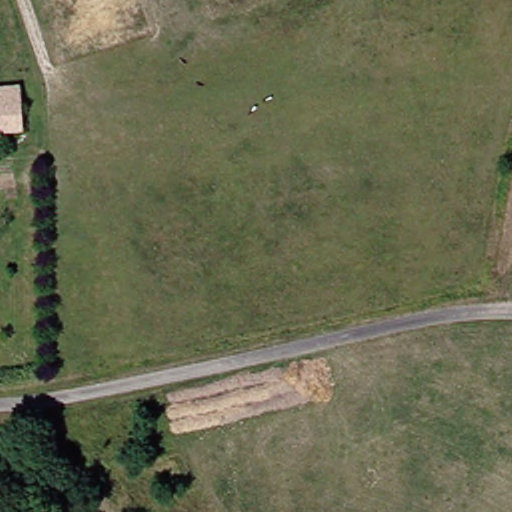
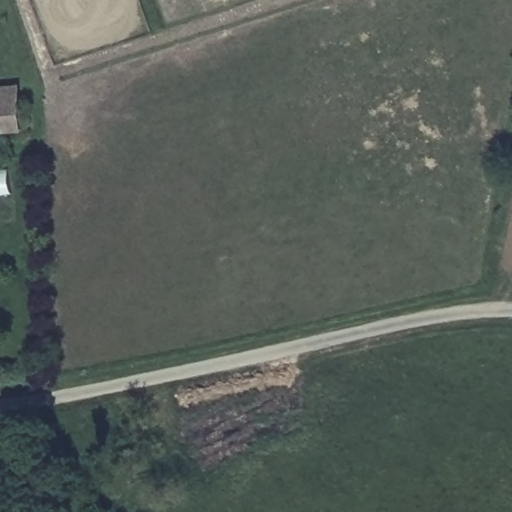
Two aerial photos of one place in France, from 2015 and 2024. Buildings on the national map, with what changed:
unchanged [(3,90),(31,88),(33,133),(5,134),(3,101),(3,90)]
unchanged [(0,134),(0,102),(3,101),(5,134),(0,134)]

